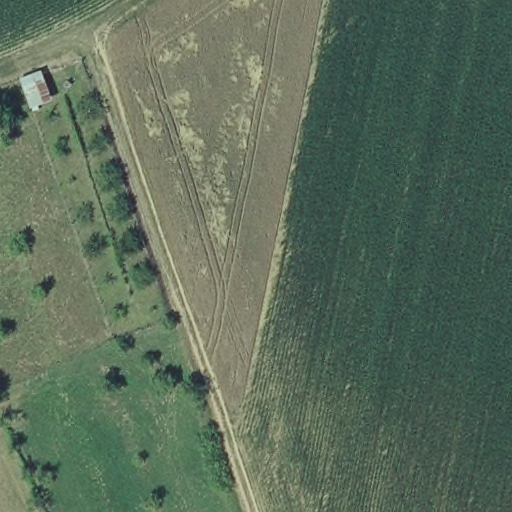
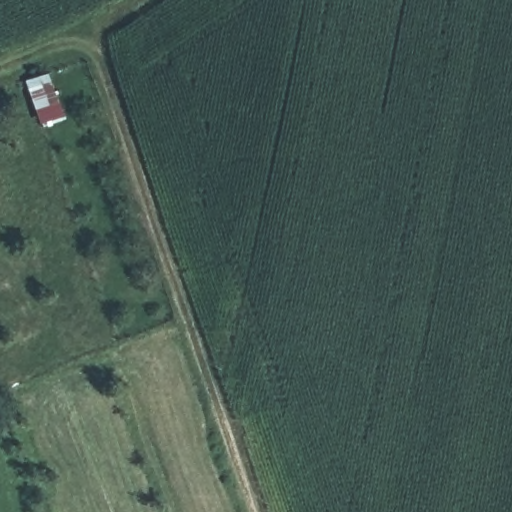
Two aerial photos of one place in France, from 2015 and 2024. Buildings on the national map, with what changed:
unchanged [(60,107),(37,114),(26,80),(50,74),(60,107)]

